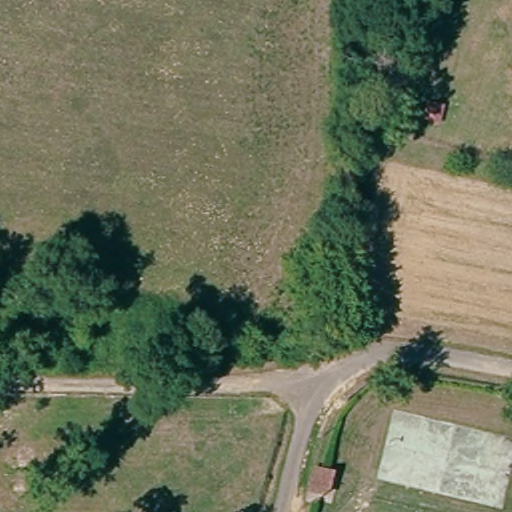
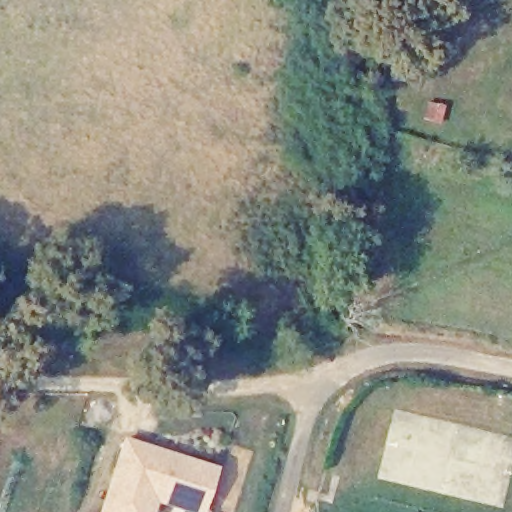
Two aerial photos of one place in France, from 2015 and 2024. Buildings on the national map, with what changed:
new [(219,467),(205,512),(189,512),(157,502),(155,512),(98,512),(124,436),(219,467)]

